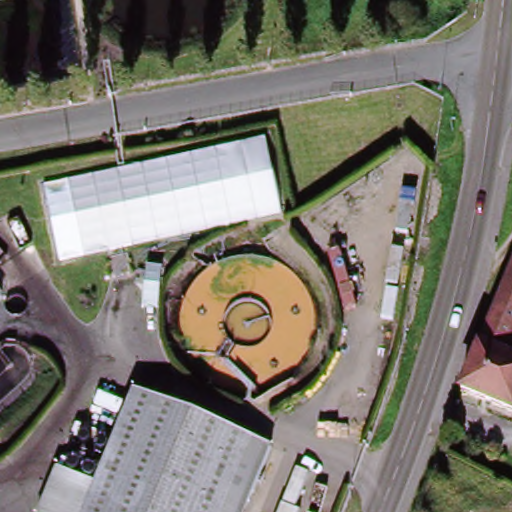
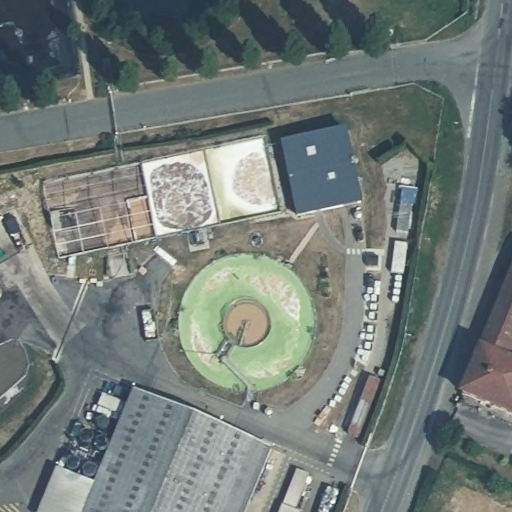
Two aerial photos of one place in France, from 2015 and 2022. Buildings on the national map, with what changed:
new [(348,127),(363,204),(297,219),(281,142),(348,127)]
unchanged [(266,138),(282,216),(59,263),(44,187),(266,138)]
unchanged [(512,367),(512,419),(459,397),(512,271),(512,348),(506,364),(512,367)]
unchanged [(112,438),(129,396),(267,454),(242,512),(83,512),(112,438)]
unchanged [(83,512),(38,512),(75,422),(112,438),(83,512)]

